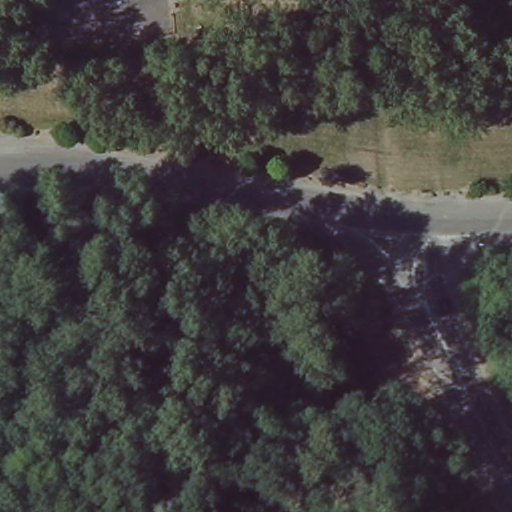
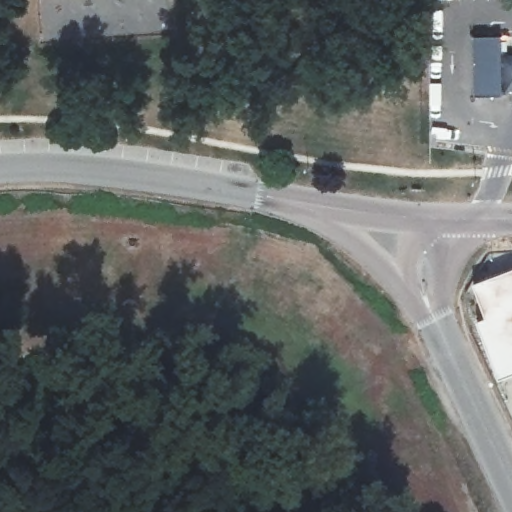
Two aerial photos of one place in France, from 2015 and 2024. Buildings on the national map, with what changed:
new [(501,38),(502,94),(476,95),(476,38),(501,38)]
new [(512,269),(512,375),(497,381),(475,321),(484,317),(472,284),(512,269)]

